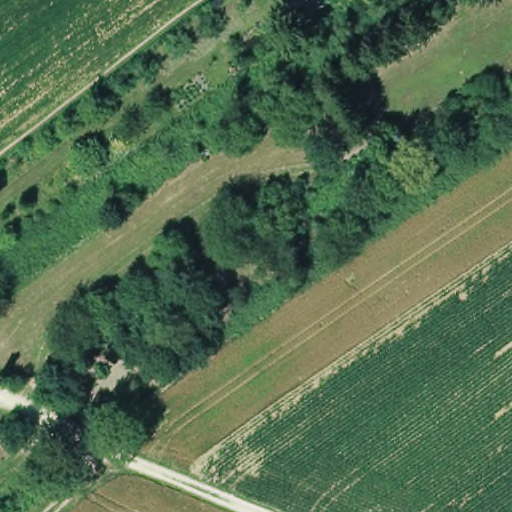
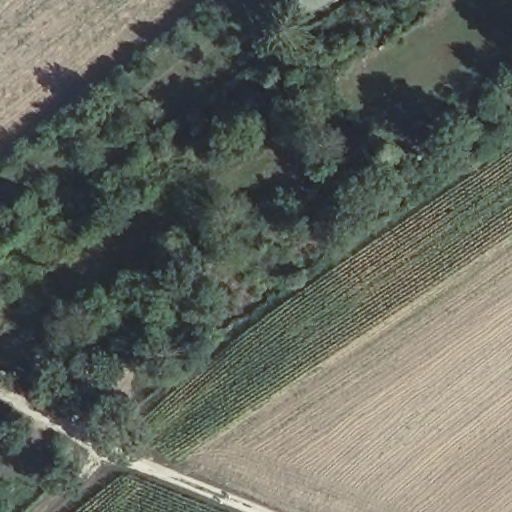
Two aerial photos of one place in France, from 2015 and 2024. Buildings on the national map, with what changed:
unchanged [(480,125),(457,137),(455,135),(440,109),(464,96),(477,120),(480,125)]

